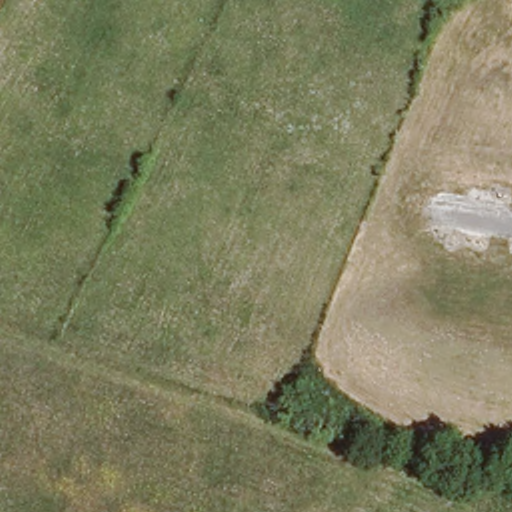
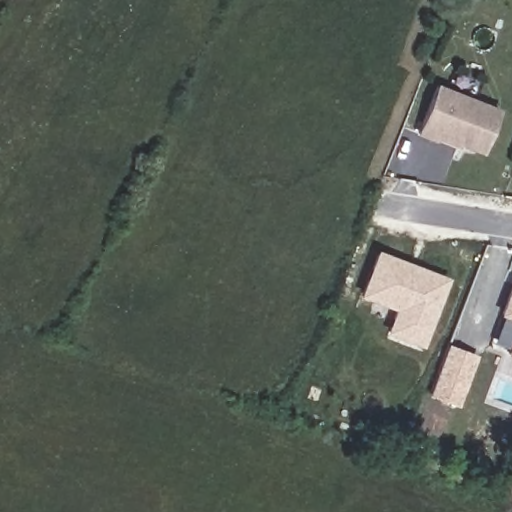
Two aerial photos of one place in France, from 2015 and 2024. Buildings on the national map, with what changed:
new [(435,138),(433,141),(415,134),(435,83),(499,108),(482,154),(435,138)]
new [(373,254),(441,279),(417,344),(385,332),(393,308),(358,294),(373,254)]
new [(512,278),(512,320),(498,315),(512,278)]
new [(512,336),(512,357),(505,354),(512,336)]
new [(458,406),(428,394),(447,344),(477,355),(458,406)]

